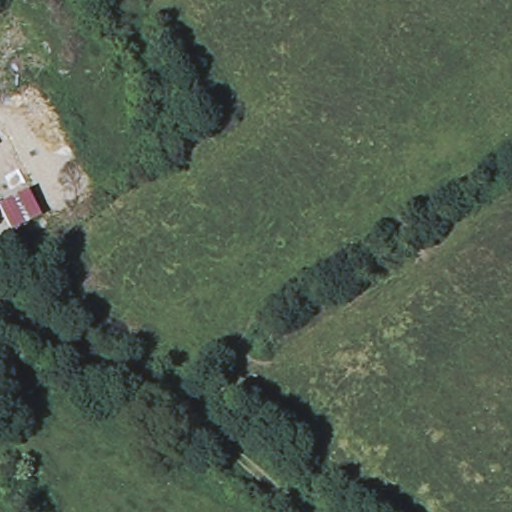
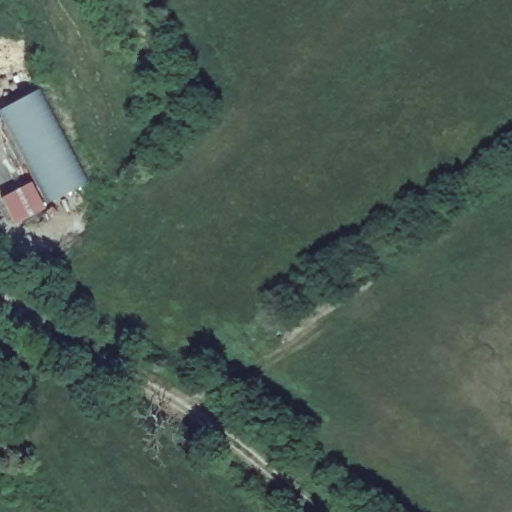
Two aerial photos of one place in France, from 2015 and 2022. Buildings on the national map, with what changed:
new [(89,182),(50,202),(0,109),(0,108),(39,89),(89,182)]
unchanged [(15,224),(0,200),(0,199),(31,182),(44,204),(15,224)]

